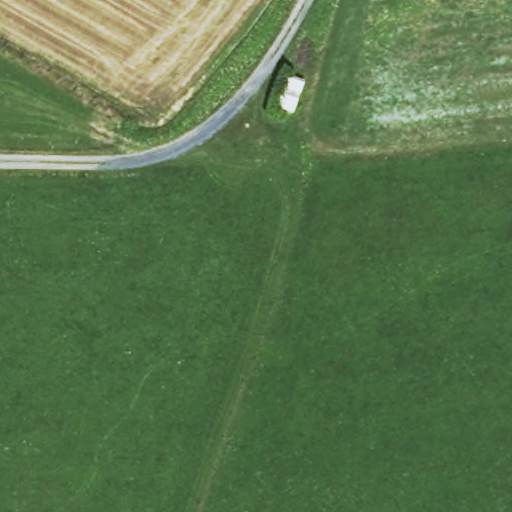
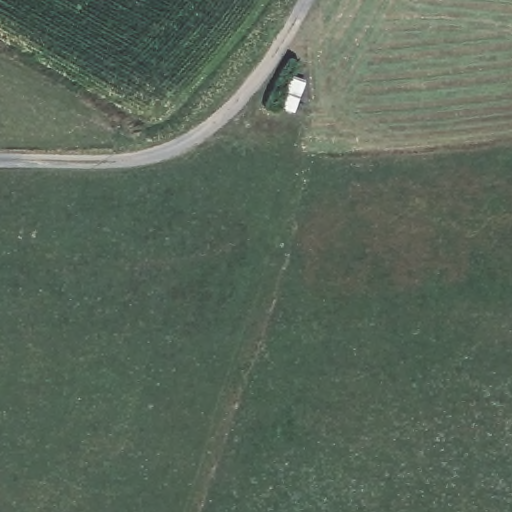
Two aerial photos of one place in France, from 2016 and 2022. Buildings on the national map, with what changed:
unchanged [(277,106),(288,74),(305,80),(296,112),(277,106)]

